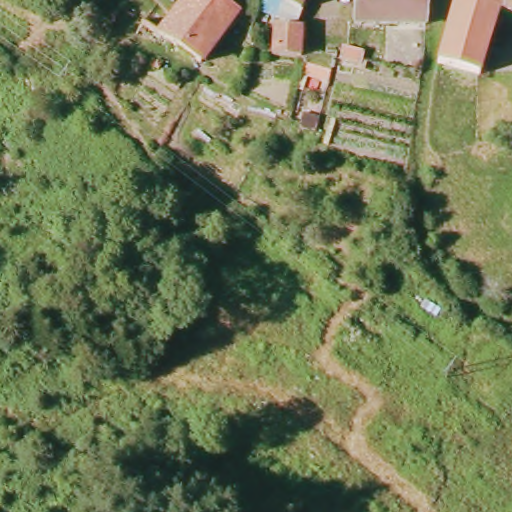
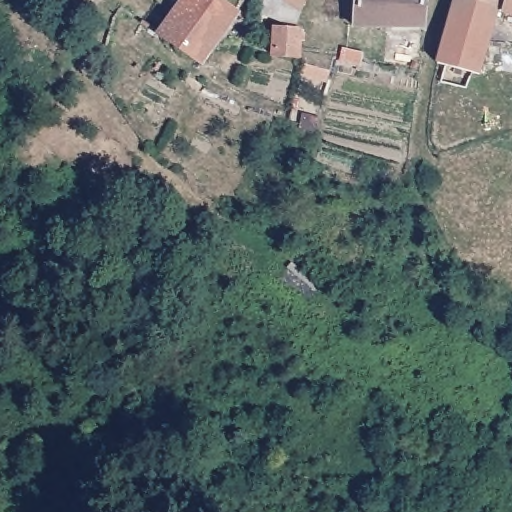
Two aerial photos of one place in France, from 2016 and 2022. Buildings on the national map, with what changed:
unchanged [(187,1),(186,0),(210,0),(232,19),(196,64),(160,38),(187,1)]
unchanged [(266,0),(309,0),(299,19),(266,0)]
unchanged [(423,40),(356,29),(358,0),(428,0),(423,40)]
unchanged [(458,0),(512,0),(512,19),(497,14),(477,74),(436,66),(458,0)]
unchanged [(297,63),(259,64),(266,27),(296,31),(297,63)]
unchanged [(358,49),(356,57),(337,55),(339,45),(358,49)]

